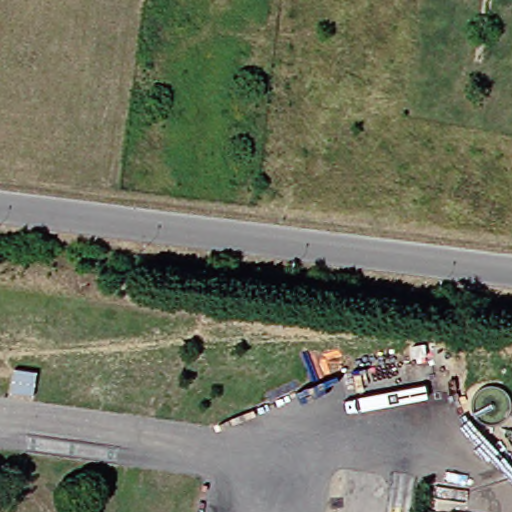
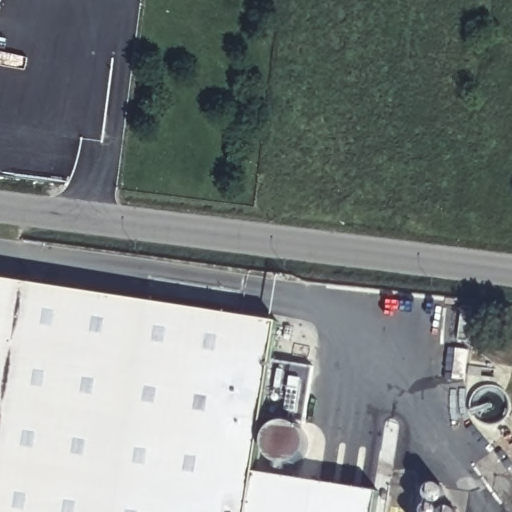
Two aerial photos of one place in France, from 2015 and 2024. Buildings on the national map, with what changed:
new [(0,280),(278,323),(254,474),(377,493),(374,512),(0,512),(0,280)]
new [(272,361),(312,367),(304,423),(263,417),(272,361)]
demolished [(42,368),(40,388),(16,385),(20,365),(42,368)]

